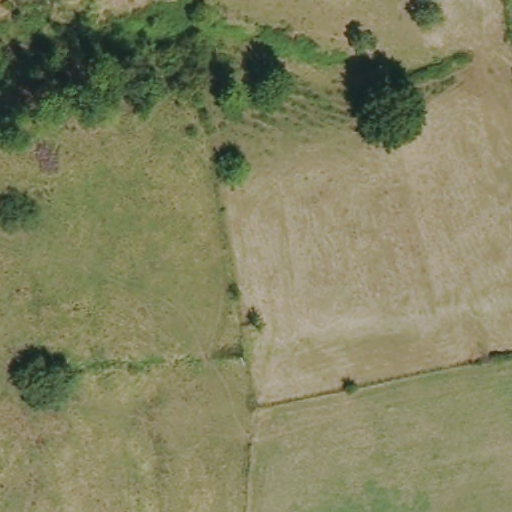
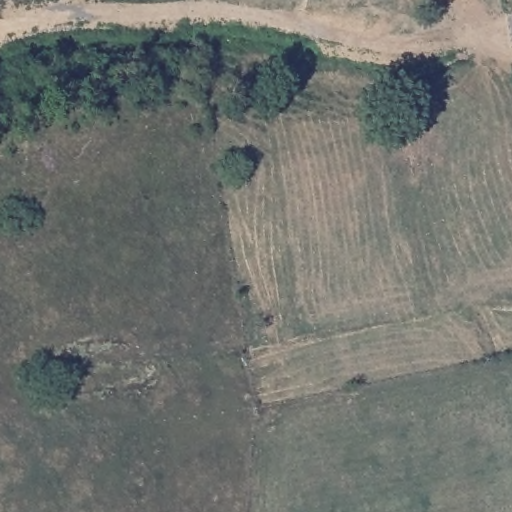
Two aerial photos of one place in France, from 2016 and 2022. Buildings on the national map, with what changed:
[]

